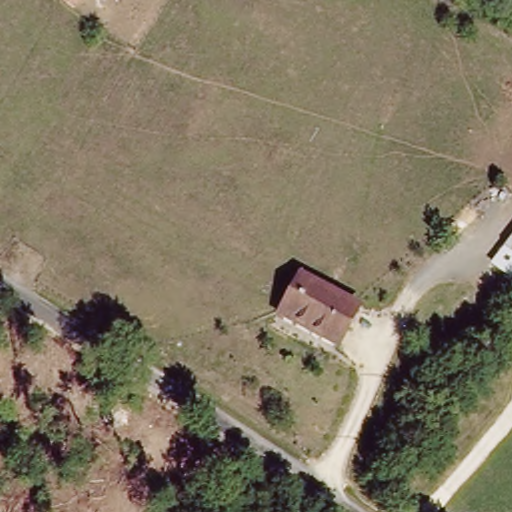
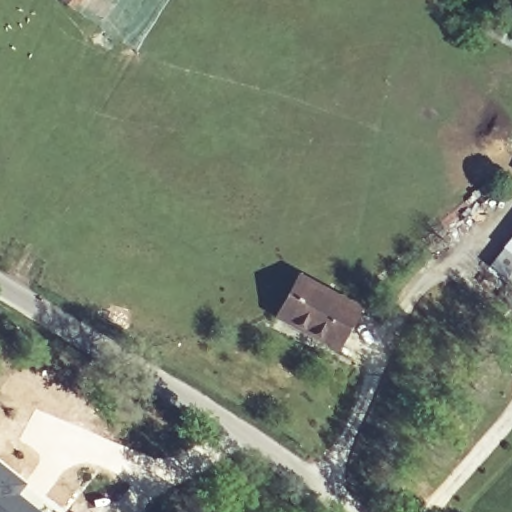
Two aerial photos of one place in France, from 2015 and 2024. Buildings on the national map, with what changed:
unchanged [(512,241),(512,249),(509,246),(512,241)]
unchanged [(334,348),(279,311),(301,276),(357,313),(334,348)]
new [(25,485),(18,495),(39,512),(0,512),(0,463),(25,485)]

